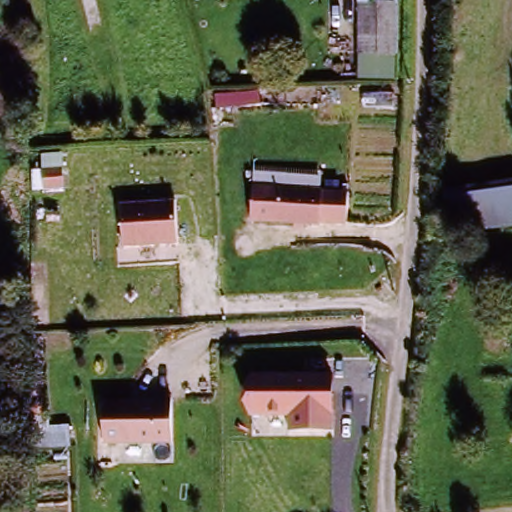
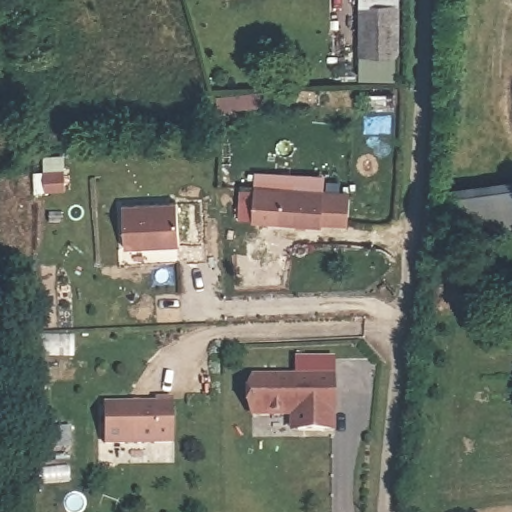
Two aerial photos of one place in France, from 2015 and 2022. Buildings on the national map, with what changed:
unchanged [(360,55),(359,0),(400,0),(400,56),(360,55)]
unchanged [(347,193),(346,227),(252,225),(254,187),(347,193)]
unchanged [(456,235),(452,196),(512,190),(512,228),(456,235)]
unchanged [(180,247),(123,249),(122,206),(177,203),(180,247)]
unchanged [(335,371),(335,429),(296,429),(295,413),(250,416),(251,371),(335,371)]
unchanged [(159,402),(158,396),(174,397),(172,442),(102,441),(105,401),(159,402)]

